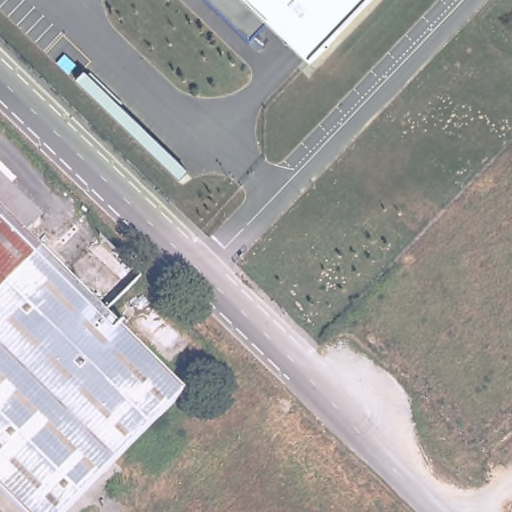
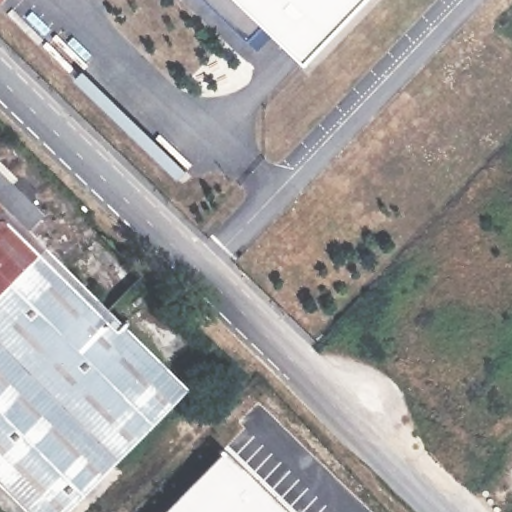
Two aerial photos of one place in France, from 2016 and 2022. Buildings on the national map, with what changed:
unchanged [(250,44),(205,0),(243,0),(267,24),(250,44)]
unchanged [(267,24),(243,0),(370,0),(309,64),(267,24)]
unchanged [(0,480),(0,163),(45,208),(28,225),(186,382),(59,512),(32,512),(0,480)]
new [(221,452),(284,512),(162,512),(221,452)]

